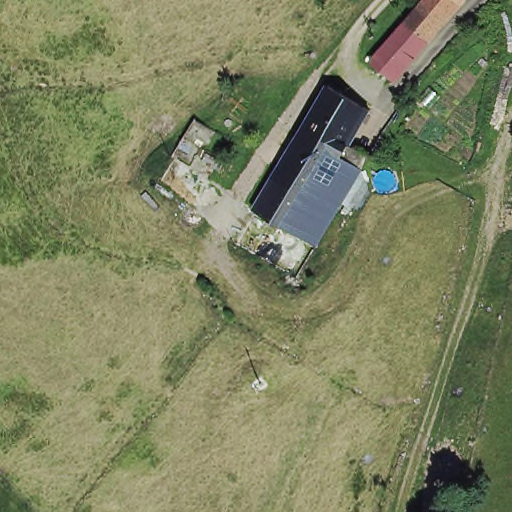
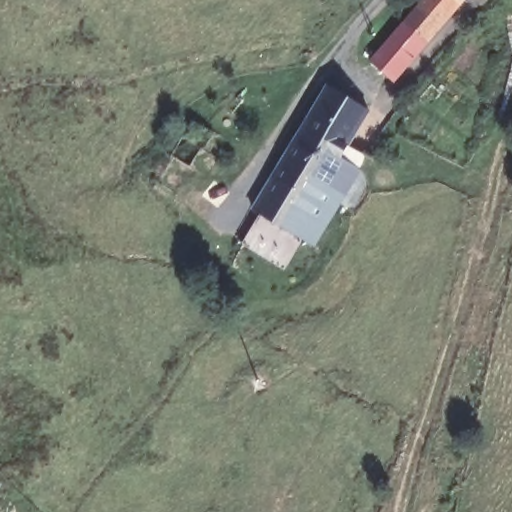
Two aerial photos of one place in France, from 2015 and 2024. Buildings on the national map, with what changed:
unchanged [(402,30),(428,0),(461,0),(465,4),(424,50),(402,30)]
unchanged [(390,88),(369,68),(402,30),(424,50),(390,88)]
unchanged [(304,130),(328,92),(367,116),(342,155),(304,130)]
unchanged [(339,160),(357,172),(312,248),(251,212),(304,130),(342,155),(339,160)]

